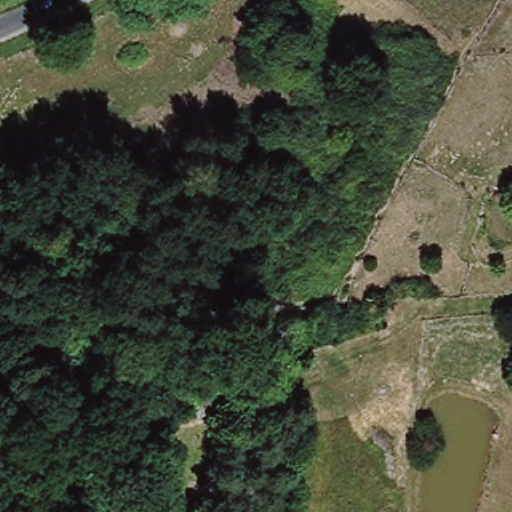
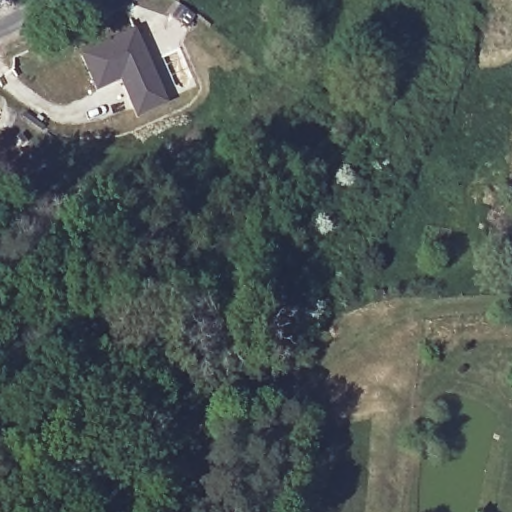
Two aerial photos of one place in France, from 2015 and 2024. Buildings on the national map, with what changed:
new [(80,54),(135,29),(169,103),(136,116),(121,81),(97,91),(80,54)]

